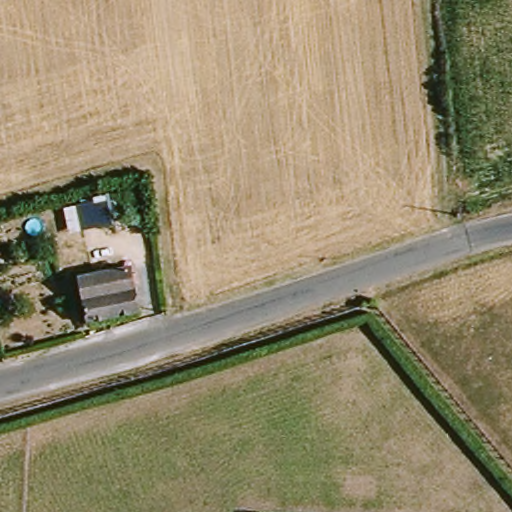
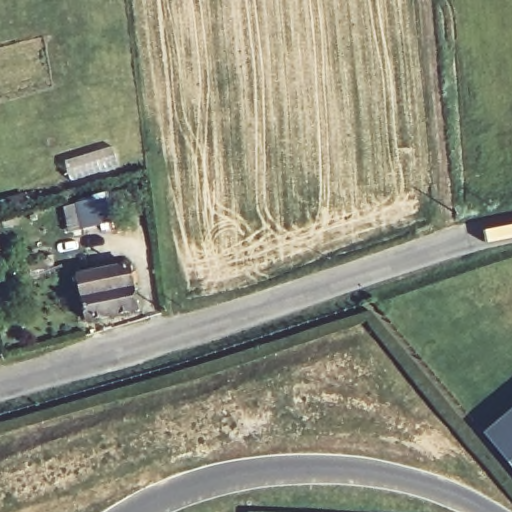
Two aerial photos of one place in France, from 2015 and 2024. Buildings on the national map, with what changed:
unchanged [(110,217),(99,221),(93,191),(105,188),(110,217)]
unchanged [(90,323),(82,282),(133,272),(141,312),(90,323)]
new [(512,413),(512,468),(485,436),(512,413)]

